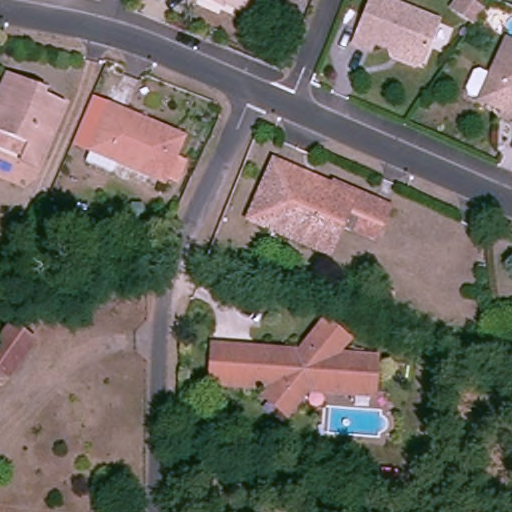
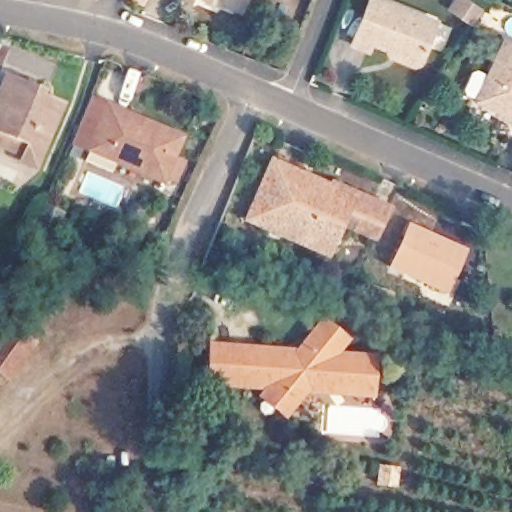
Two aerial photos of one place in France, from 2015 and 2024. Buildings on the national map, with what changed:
unchanged [(234,0),(251,0),(249,6),(234,0)]
unchanged [(470,0),(485,10),(475,26),(471,26),(453,14),(457,6),(461,0),(470,0)]
unchanged [(396,68),(400,58),(384,53),(380,63),(358,55),(362,44),(378,6),(390,11),(391,9),(437,24),(435,28),(443,31),(427,68),(422,78),(396,68)]
unchanged [(482,98),(481,98),(481,96),(470,91),(469,87),(477,70),(481,69),(492,74),(508,40),(512,42),(512,111),(482,98)]
unchanged [(16,71),(41,81),(36,89),(47,94),(60,101),(51,120),(31,165),(12,156),(15,150),(0,143),(0,84),(8,67),(16,71)]
unchanged [(185,133),(165,177),(99,146),(120,103),(185,133)]
unchanged [(251,200),(275,147),(311,166),(356,186),(392,203),(369,254),(332,238),(329,246),(303,234),(247,209),(251,200)]
new [(466,248),(447,295),(387,268),(408,222),(466,248)]
unchanged [(34,341),(5,376),(0,373),(0,336),(11,322),(34,341)]
unchanged [(272,385),(206,375),(208,364),(209,356),(211,344),(240,349),(258,351),(257,354),(266,355),(266,353),(286,356),(285,358),(296,360),(306,350),(305,348),(326,326),(347,347),(328,365),(340,366),(341,363),(372,368),(368,399),(344,396),(305,390),(286,408),(280,415),(260,397),(267,390),(272,385)]
unchanged [(403,469),(401,484),(385,481),(388,467),(403,469)]

